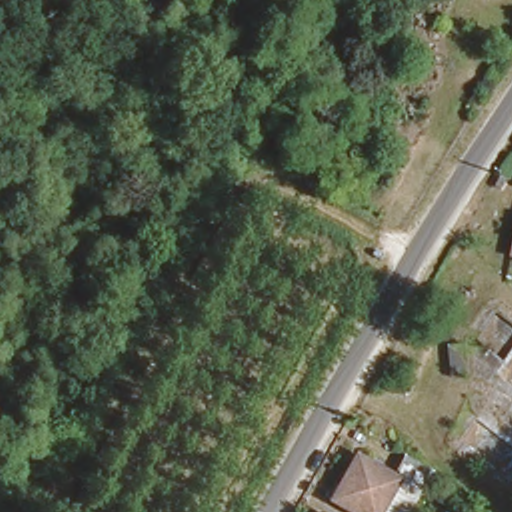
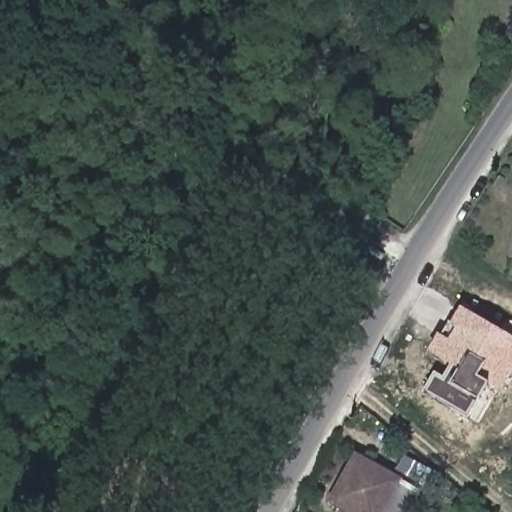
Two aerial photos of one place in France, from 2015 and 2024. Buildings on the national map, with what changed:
unchanged [(512,217),(512,257),(500,255),(507,216),(512,217)]
new [(424,392),(436,372),(452,381),(460,368),(428,351),(439,331),(443,334),(460,304),(512,334),(512,376),(504,391),(487,382),(466,416),(424,392)]
unchanged [(329,493),(357,453),(397,482),(376,512),(355,512),(329,493)]
unchanged [(430,478),(421,490),(399,473),(406,462),(430,478)]
unchanged [(417,496),(406,512),(376,512),(397,482),(417,496)]

